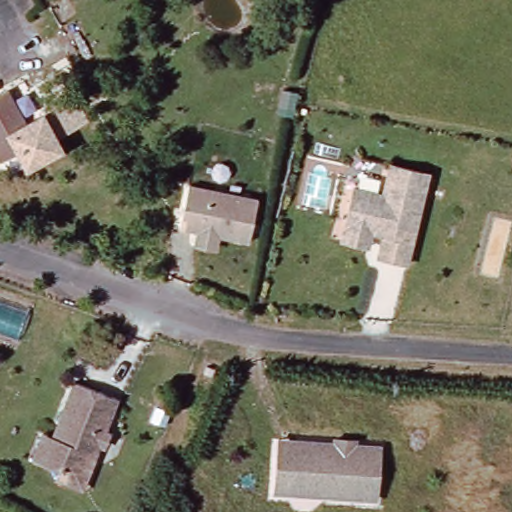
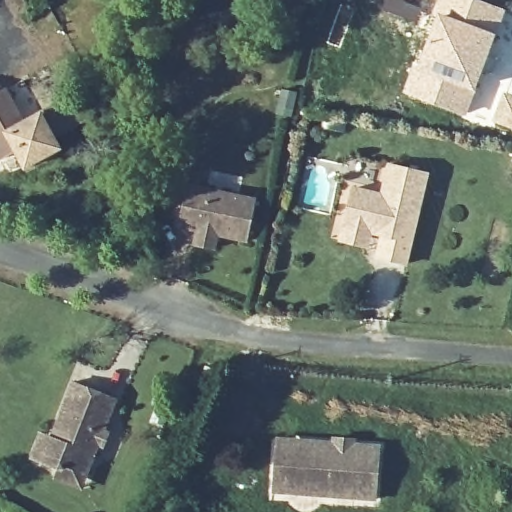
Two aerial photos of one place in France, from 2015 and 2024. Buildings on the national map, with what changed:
new [(437,0),(486,0),(507,9),(497,34),(432,12),(437,0)]
new [(426,34),(432,12),(497,34),(477,91),(444,77),(433,106),(401,94),(426,34)]
new [(444,77),(477,91),(466,119),(433,106),(444,77)]
unchanged [(0,95),(3,93),(21,124),(56,102),(69,125),(49,137),(55,149),(22,167),(14,152),(1,161),(0,160),(0,95)]
new [(512,99),(512,125),(497,120),(505,96),(512,99)]
unchanged [(345,245),(348,231),(356,192),(385,198),(392,167),(429,175),(409,267),(381,261),(386,237),(374,236),(372,251),(345,245)]
unchanged [(258,197),(249,242),(220,236),(217,251),(192,245),(195,230),(180,226),(189,183),(258,197)]
unchanged [(58,482),(60,476),(45,468),(32,462),(42,441),(55,446),(81,384),(118,400),(84,480),(79,491),(58,482)]
unchanged [(312,439),(335,440),(335,435),(356,436),(356,440),(381,441),(377,494),(277,491),(278,455),(312,456),(312,439)]

